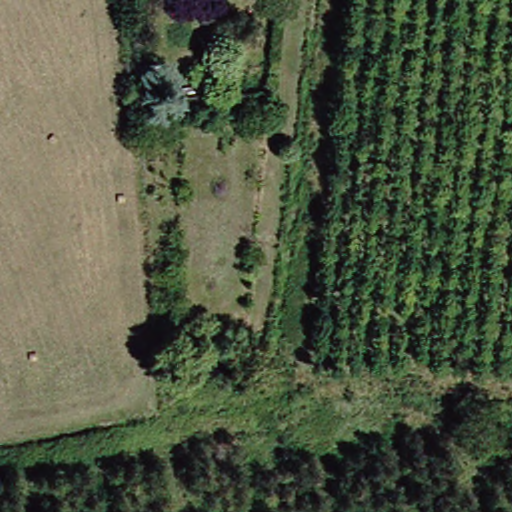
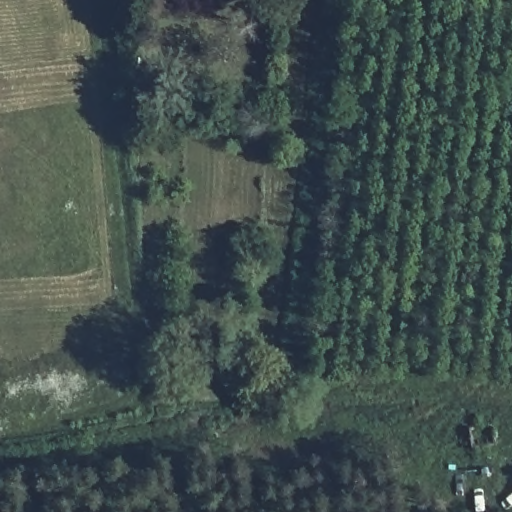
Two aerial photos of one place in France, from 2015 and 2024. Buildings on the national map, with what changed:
unchanged [(491,424),(495,442),(468,447),(464,427),(491,424)]

